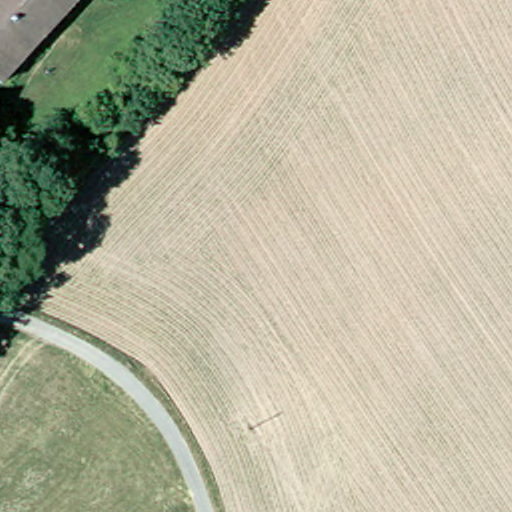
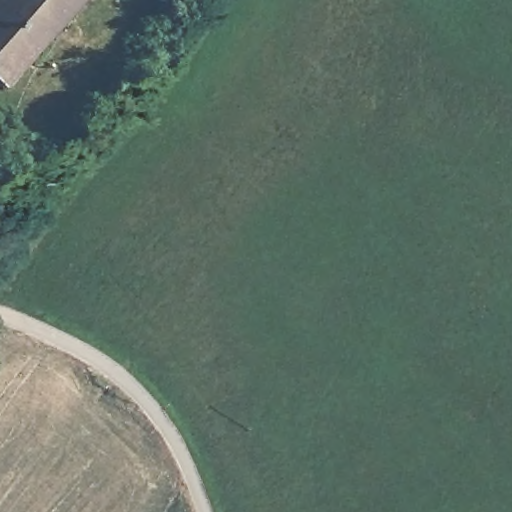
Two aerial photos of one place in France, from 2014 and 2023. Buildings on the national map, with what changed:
unchanged [(0,80),(0,0),(70,0),(68,2),(0,80)]

